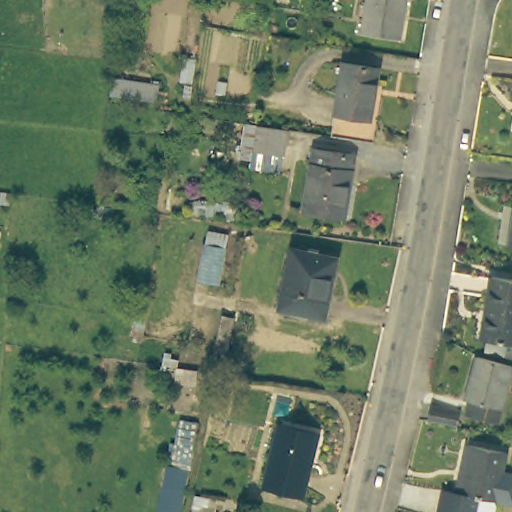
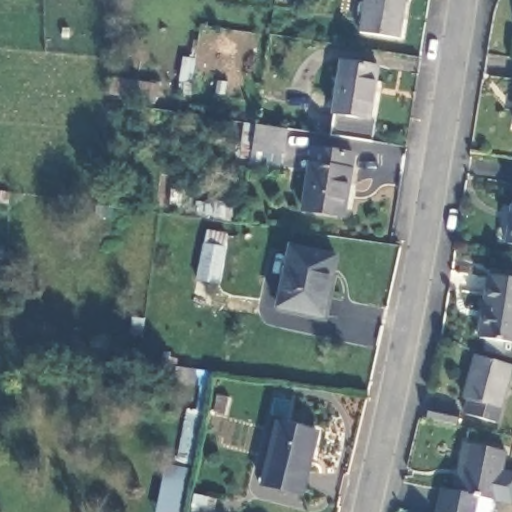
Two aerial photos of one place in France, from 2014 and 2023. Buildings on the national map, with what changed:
unchanged [(360,25),(364,0),(402,0),(396,32),(360,25)]
unchanged [(338,58),(375,64),(367,110),(373,112),(368,135),(327,132),(338,58)]
unchanged [(277,158),(242,154),(247,126),(281,129),(277,158)]
unchanged [(347,187),(341,185),(336,212),(300,209),(308,149),(351,154),(347,187)]
unchanged [(510,239),(512,225),(512,239),(510,239)]
unchanged [(212,288),(191,285),(197,238),(218,240),(212,288)]
unchanged [(332,277),(325,276),(320,309),(280,304),(289,246),(336,252),(332,277)]
unchanged [(512,278),(512,342),(480,337),(490,275),(512,278)]
unchanged [(230,318),(225,358),(211,355),(217,317),(230,318)]
unchanged [(512,364),(512,372),(502,420),(472,413),(475,400),(470,399),(478,356),(512,364)]
unchanged [(429,412),(433,397),(463,404),(460,420),(431,413),(429,412)]
unchanged [(316,429),(307,487),(266,479),(275,423),(316,429)]
unchanged [(447,488),(462,492),(468,462),(465,461),(468,444),(508,453),(498,501),(496,512),(441,512),(447,488)]
unchanged [(209,512),(202,512),(202,511),(209,512)]

